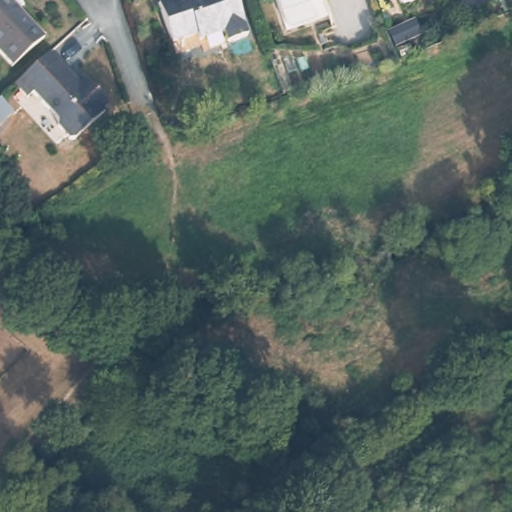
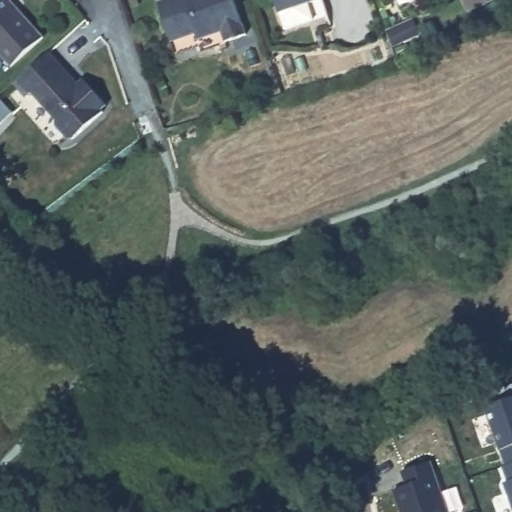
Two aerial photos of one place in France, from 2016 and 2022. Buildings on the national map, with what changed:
unchanged [(39,44),(7,73),(0,65),(0,0),(4,0),(2,3),(39,44)]
unchanged [(223,43),(219,34),(195,41),(193,35),(167,43),(155,4),(167,0),(232,0),(244,36),(223,43)]
unchanged [(311,23),(288,31),(283,27),(280,16),(278,16),(273,0),(324,0),(305,6),(311,23)]
unchanged [(396,0),(403,0),(397,3),(396,0)]
unchanged [(389,34),(413,24),(419,39),(395,50),(389,34)]
unchanged [(77,89),(81,85),(106,112),(102,116),(103,116),(70,147),(53,130),(55,125),(31,99),(25,104),(12,90),(48,56),(77,89)]
unchanged [(2,98),(15,113),(0,126),(0,100),(2,98)]
new [(512,462),(506,464),(486,407),(512,397),(512,462)]
new [(393,489),(407,485),(402,472),(430,462),(449,512),(401,512),(393,489)]
new [(506,482),(501,467),(506,464),(512,462),(512,509),(503,484),(506,482)]

